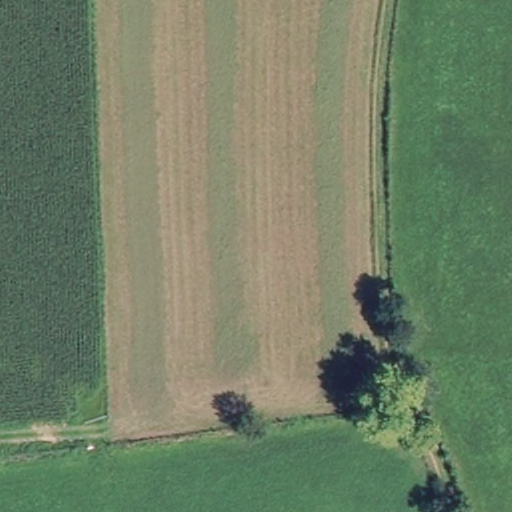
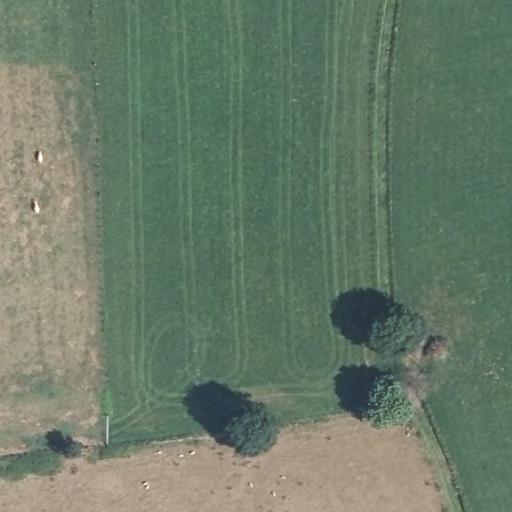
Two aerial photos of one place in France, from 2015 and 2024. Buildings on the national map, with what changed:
[]

